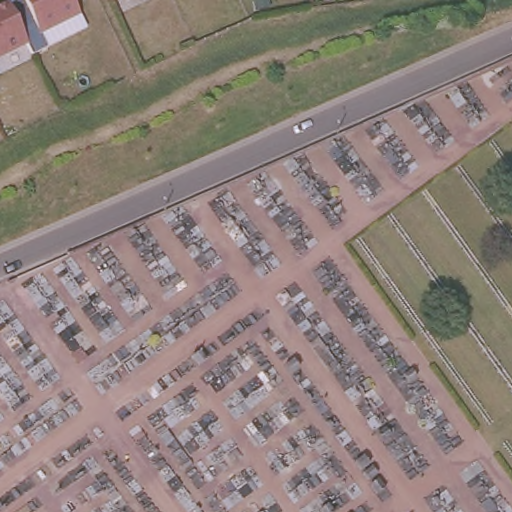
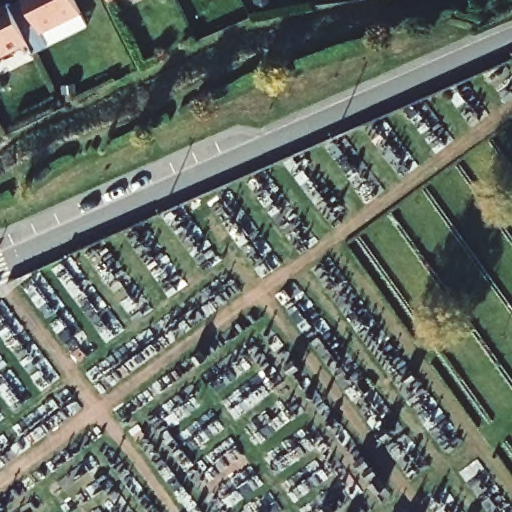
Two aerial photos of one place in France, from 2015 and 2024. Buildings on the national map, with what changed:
unchanged [(38,34),(45,48),(31,55),(25,44),(7,7),(20,0),(70,0),(77,15),(38,34)]
unchanged [(104,0),(108,0),(105,1),(104,0)]
unchanged [(7,7),(25,44),(0,57),(0,8),(6,5),(7,7)]

